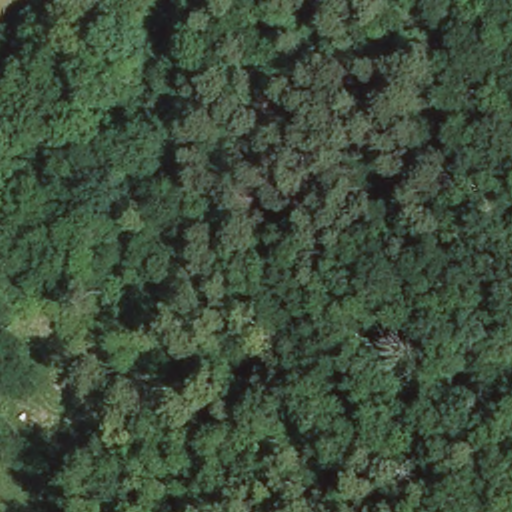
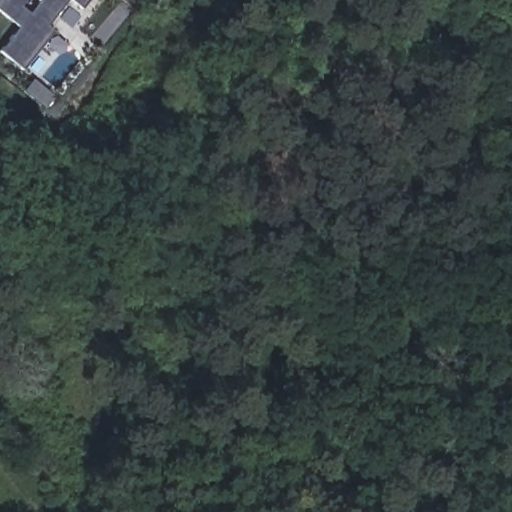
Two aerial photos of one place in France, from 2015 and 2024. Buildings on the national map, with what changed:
new [(46,25),(52,30),(20,68),(0,51),(0,47),(16,27),(0,12),(0,0),(23,0),(19,5),(29,14),(39,1),(39,0),(66,0),(46,25)]
new [(82,8),(71,0),(89,0),(82,8)]
new [(5,364),(0,368),(0,357),(5,364)]

